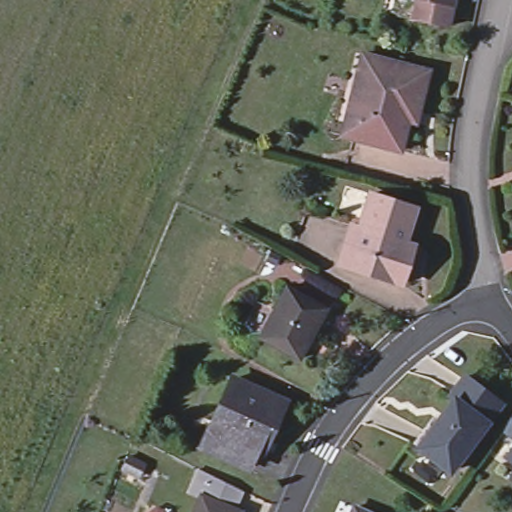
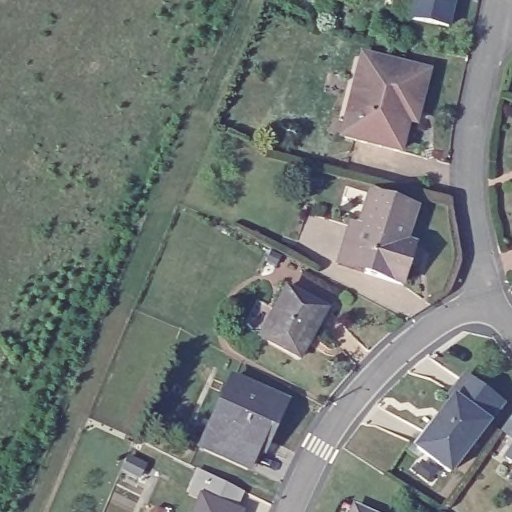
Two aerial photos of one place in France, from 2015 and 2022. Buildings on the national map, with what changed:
unchanged [(410,17),(415,0),(452,0),(447,25),(410,17)]
unchanged [(407,120),(400,151),(341,138),(352,90),(360,56),(372,58),(426,71),(417,112),(416,121),(407,120)]
unchanged [(410,214),(400,248),(409,251),(397,289),(360,278),(362,271),(335,263),(345,231),(354,233),(365,199),(410,214)]
unchanged [(325,305),(299,356),(260,335),(286,284),(325,305)]
unchanged [(279,400),(257,448),(251,446),(240,468),(200,449),(212,426),(204,423),(227,376),(279,400)]
unchanged [(410,456),(447,409),(444,407),(457,390),(492,419),(479,436),(441,482),(410,456)]
unchanged [(507,455),(512,447),(512,458),(507,455)]
unchanged [(200,510),(187,504),(192,493),(197,482),(240,503),(235,512),(199,512),(200,510)]
unchanged [(371,512),(350,512),(354,505),(371,512)]

